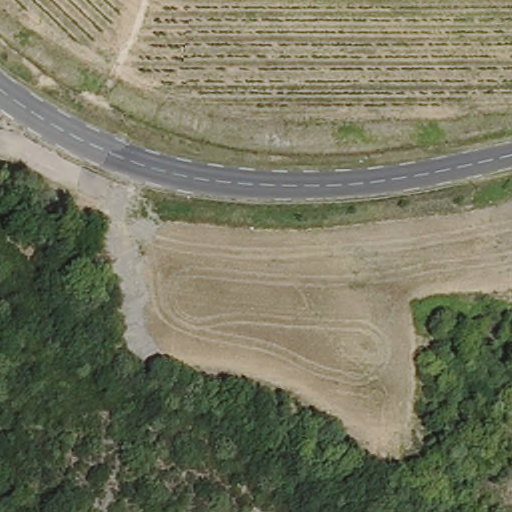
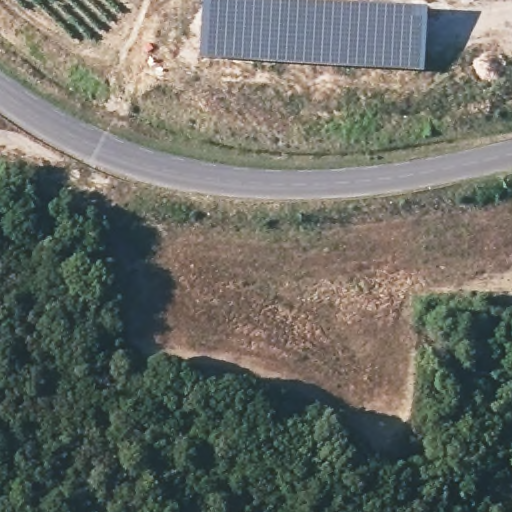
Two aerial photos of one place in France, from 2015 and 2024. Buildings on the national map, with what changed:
new [(203,0),(267,0),(427,10),(423,74),(200,60),(203,0)]

